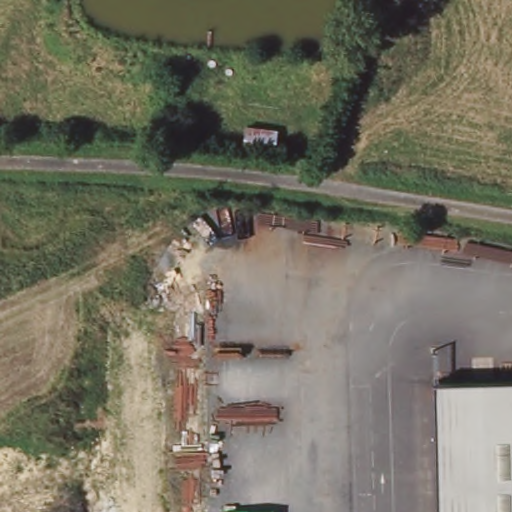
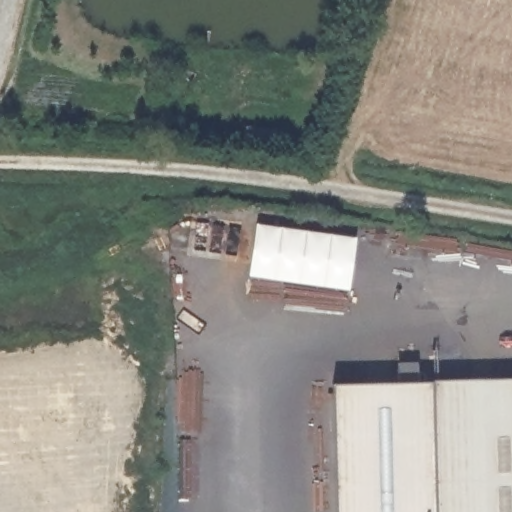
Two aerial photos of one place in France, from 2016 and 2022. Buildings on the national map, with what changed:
new [(358,237),(350,289),(250,274),(257,222),(358,237)]
unchanged [(430,379),(512,377),(512,512),(435,512),(430,379)]
new [(430,379),(435,512),(337,512),(333,384),(430,379)]

